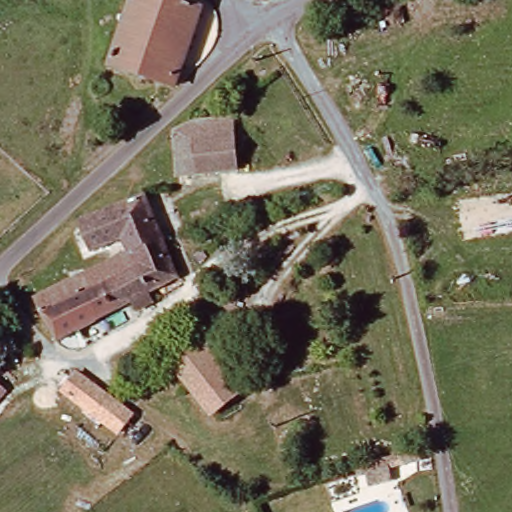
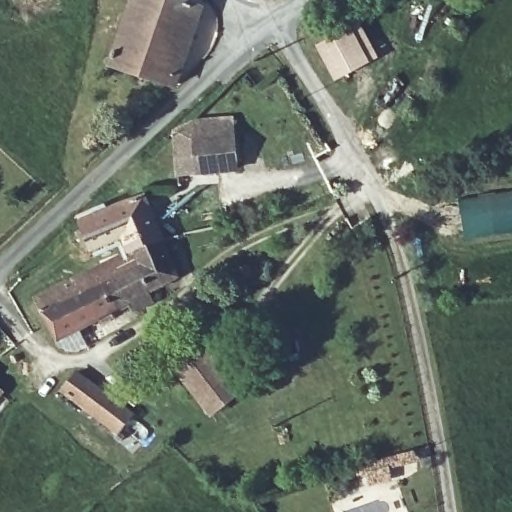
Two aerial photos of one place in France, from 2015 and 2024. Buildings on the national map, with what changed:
unchanged [(103,63),(127,0),(169,0),(198,11),(170,89),(103,63)]
new [(334,81),(315,46),(352,26),(359,23),(377,59),(369,63),(334,81)]
unchanged [(193,126),(218,124),(233,122),(234,130),(237,173),(178,178),(174,135),(193,126)]
new [(458,197),(512,187),(512,233),(464,241),(458,197)]
unchanged [(127,266),(118,242),(91,251),(81,220),(146,194),(169,251),(127,266)]
unchanged [(179,281),(48,328),(36,299),(127,266),(169,251),(179,281)]
unchanged [(219,339),(234,366),(215,376),(230,402),(199,419),(170,366),(204,347),(219,339)]
unchanged [(122,433),(68,394),(80,377),(134,418),(122,433)]

